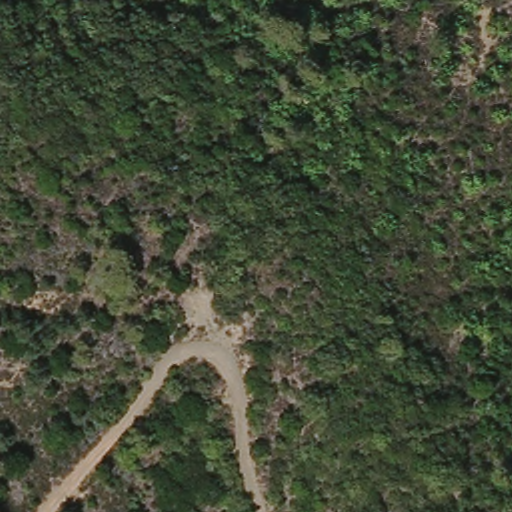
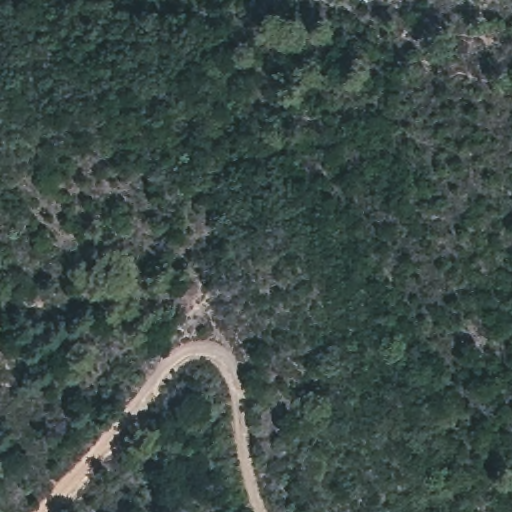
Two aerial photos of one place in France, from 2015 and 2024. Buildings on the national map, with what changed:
[]

